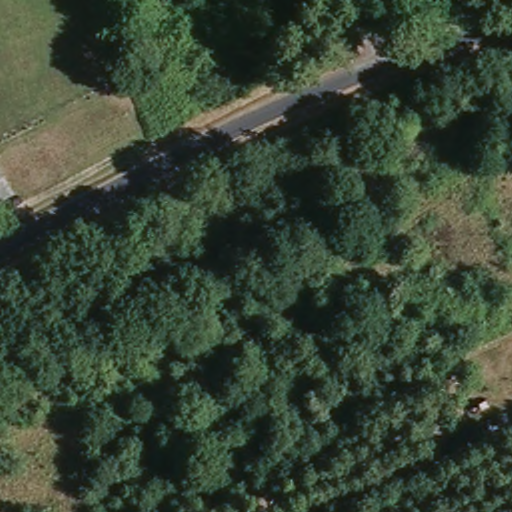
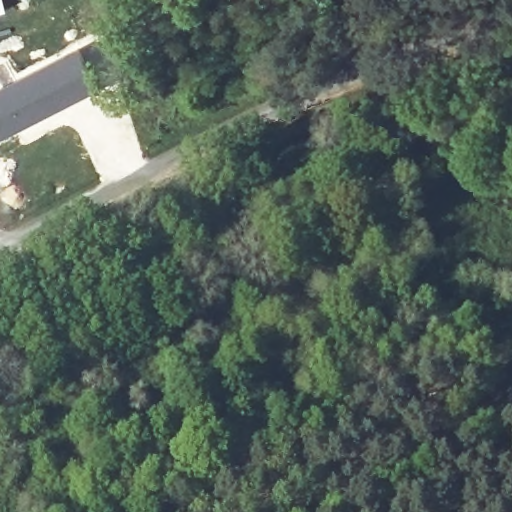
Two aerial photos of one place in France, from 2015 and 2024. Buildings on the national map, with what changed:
new [(99,87),(0,139),(0,88),(78,48),(99,87)]

